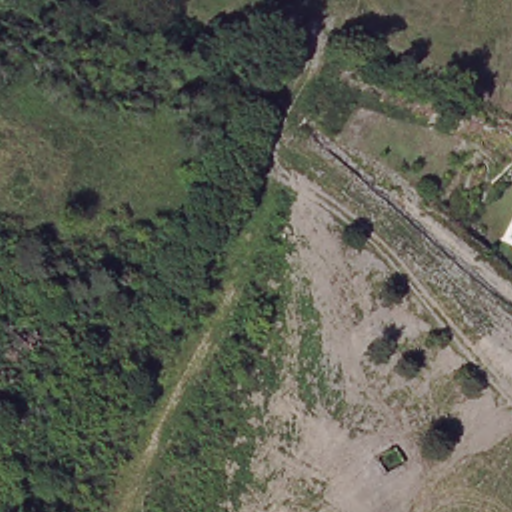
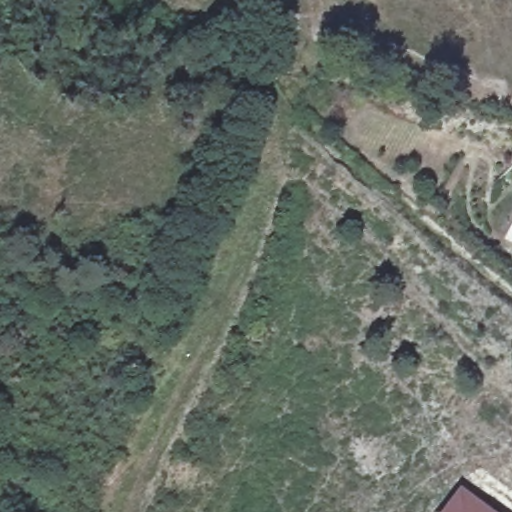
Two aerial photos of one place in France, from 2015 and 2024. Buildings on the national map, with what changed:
new [(493,512),(444,512),(463,488),(493,512)]

